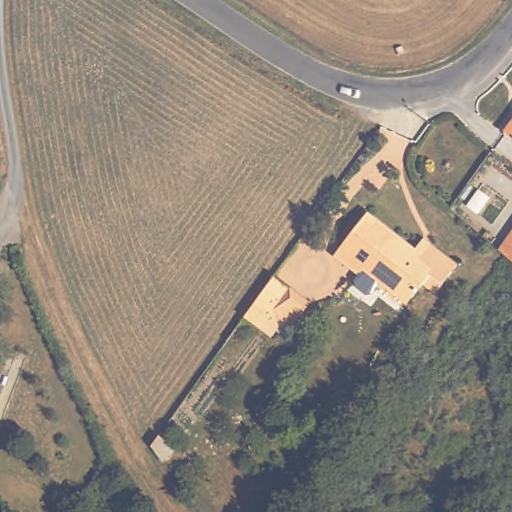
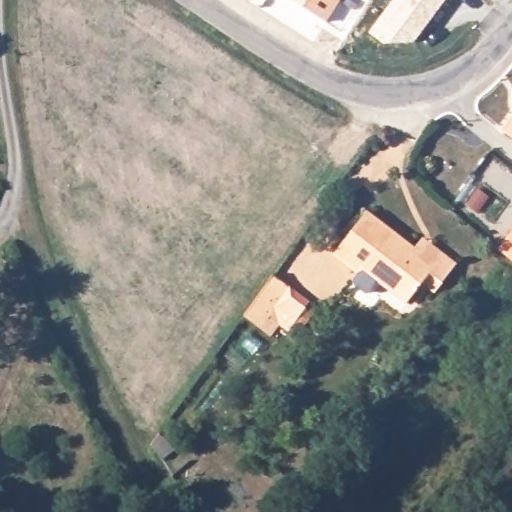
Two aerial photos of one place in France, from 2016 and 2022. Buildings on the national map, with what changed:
new [(448,0),(418,38),(389,39),(375,28),(396,0),(448,0)]
unchanged [(512,119),(512,134),(505,129),(512,119)]
unchanged [(367,269),(363,275),(338,256),(370,212),(417,248),(426,236),(461,263),(448,279),(438,272),(420,296),(413,304),(367,269)]
unchanged [(512,237),(512,261),(501,255),(512,237)]
unchanged [(273,271),(314,300),(293,328),(282,319),(271,336),(258,326),(244,346),(224,334),(273,271)]
unchanged [(157,463),(167,452),(186,465),(174,485),(157,463)]

